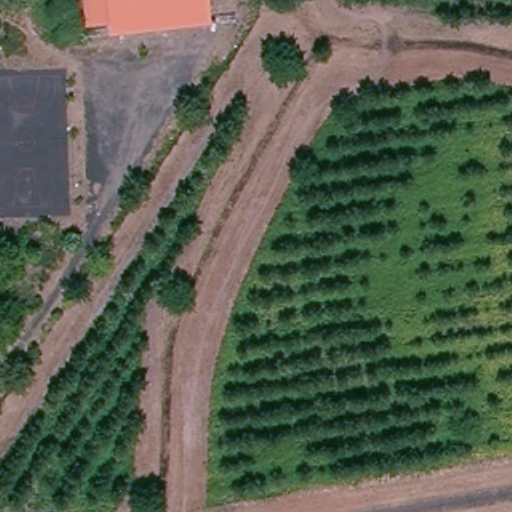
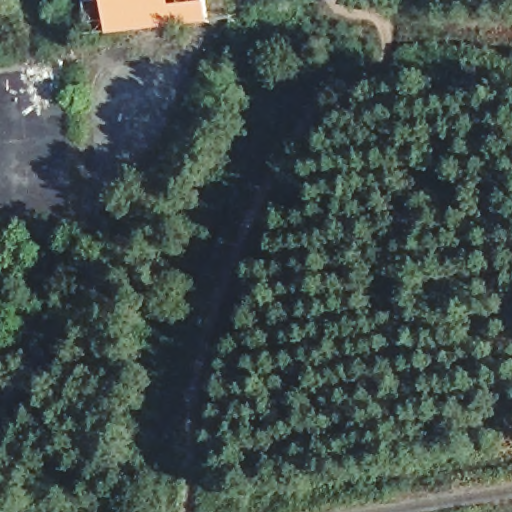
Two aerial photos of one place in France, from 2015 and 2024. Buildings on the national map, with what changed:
unchanged [(208,24),(107,34),(107,23),(90,22),(87,0),(206,0),(208,24)]

